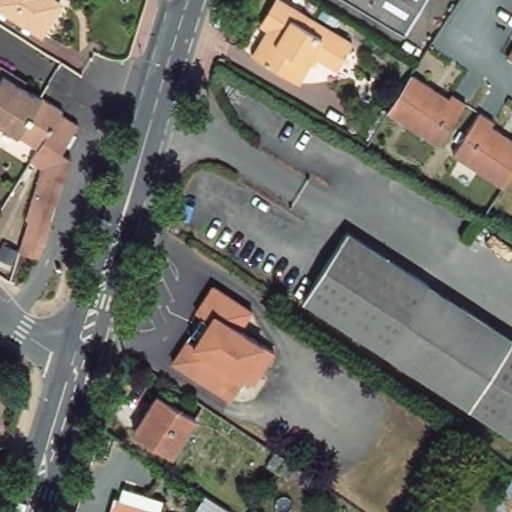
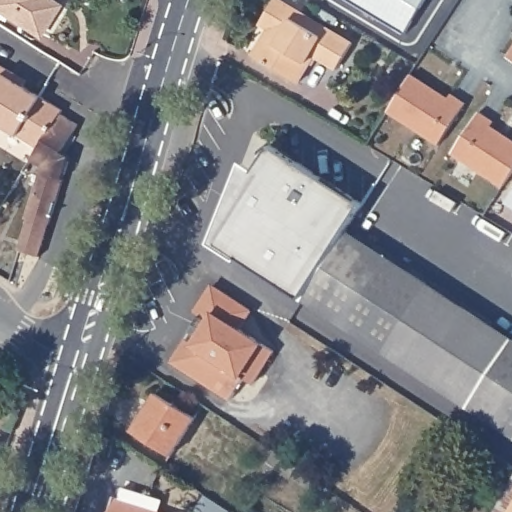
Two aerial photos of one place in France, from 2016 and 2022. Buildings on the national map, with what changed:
unchanged [(51,25),(46,33),(0,2),(0,0),(58,0),(65,4),(51,25)]
unchanged [(309,58),(293,85),(249,60),(263,33),(266,34),(272,24),(261,18),(270,0),(288,0),(353,35),(332,71),(309,58)]
unchanged [(354,0),(421,0),(407,27),(354,0)]
unchanged [(508,56),(512,51),(512,58),(508,56)]
unchanged [(30,161),(29,161),(37,148),(0,125),(0,63),(14,71),(11,76),(39,93),(44,97),(63,109),(61,112),(78,123),(62,149),(70,154),(64,175),(40,168),(30,161)]
unchanged [(441,99),(445,100),(448,96),(462,106),(435,147),(385,114),(408,77),(441,99)]
unchanged [(453,156),(481,114),(496,124),(492,129),(512,142),(512,178),(504,190),(453,156)]
new [(346,228),(302,297),(242,258),(239,262),(210,244),(242,161),(257,168),(271,145),(362,203),(346,228)]
unchanged [(64,175),(40,253),(20,247),(30,215),(26,214),(40,168),(64,175)]
unchanged [(512,336),(512,436),(301,300),(302,297),(346,228),(512,336)]
unchanged [(251,384),(242,378),(229,397),(170,359),(184,338),(189,342),(193,335),(187,331),(198,314),(194,311),(211,286),(250,312),(239,329),(272,351),(251,384)]
unchanged [(167,454),(129,429),(154,391),(192,416),(167,454)]
unchanged [(97,446),(102,433),(112,436),(109,449),(97,446)]
unchanged [(512,498),(512,512),(504,512),(512,498)]
unchanged [(110,500),(148,512),(106,512),(110,500)]

